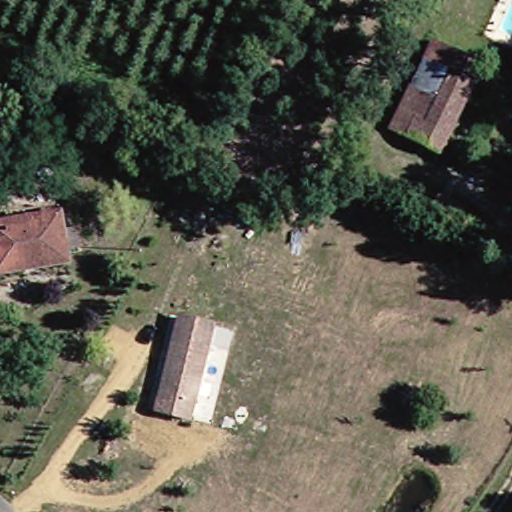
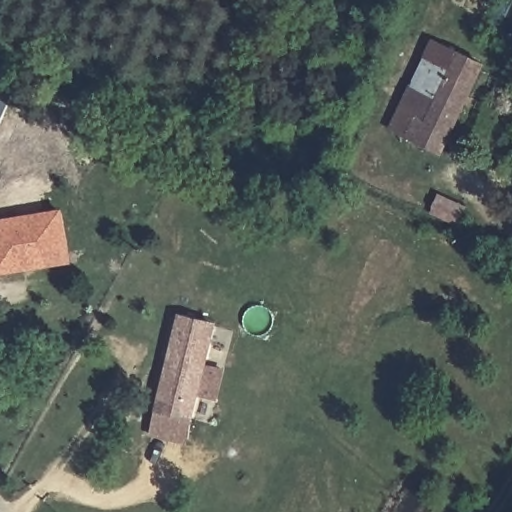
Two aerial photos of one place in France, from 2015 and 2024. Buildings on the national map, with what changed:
unchanged [(442,44),(465,55),(447,93),(426,82),(442,44)]
unchanged [(426,82),(447,93),(465,55),(493,69),(459,147),(455,155),(403,131),(406,126),(426,82)]
unchanged [(0,227),(30,220),(52,215),(61,258),(62,263),(0,275),(0,227)]
unchanged [(193,418),(158,407),(182,316),(217,326),(193,418)]

